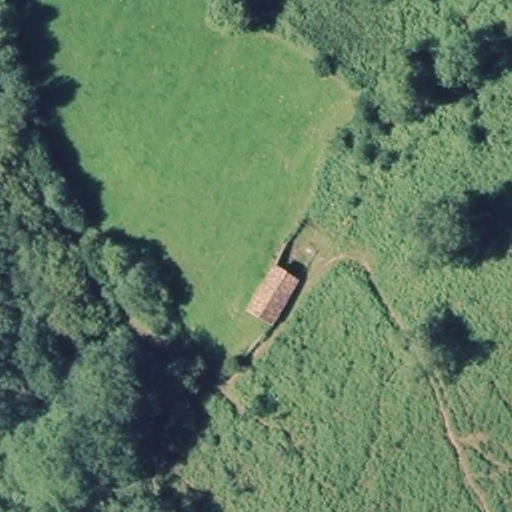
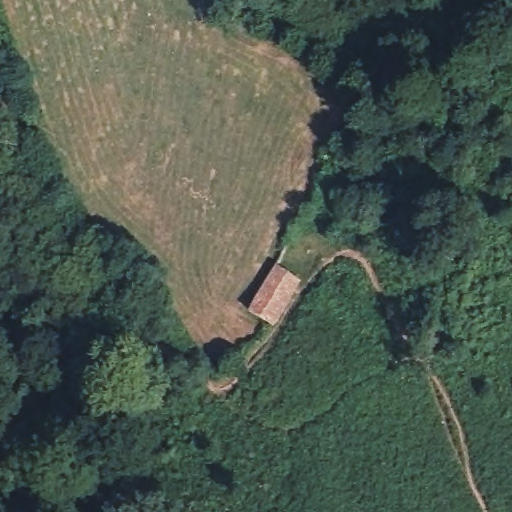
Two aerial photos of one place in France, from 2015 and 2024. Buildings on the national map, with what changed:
unchanged [(290,293),(270,323),(249,312),(276,268),(297,281),(290,293)]

